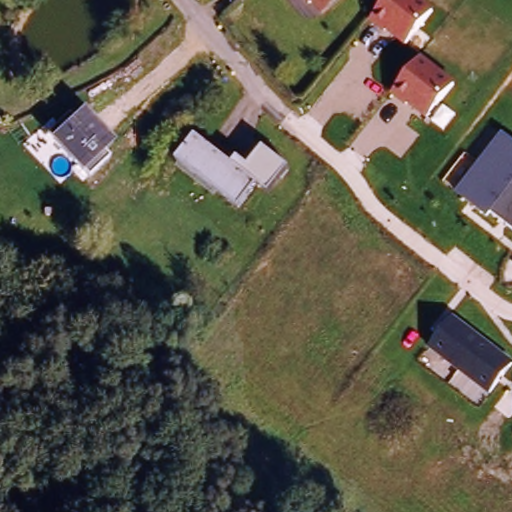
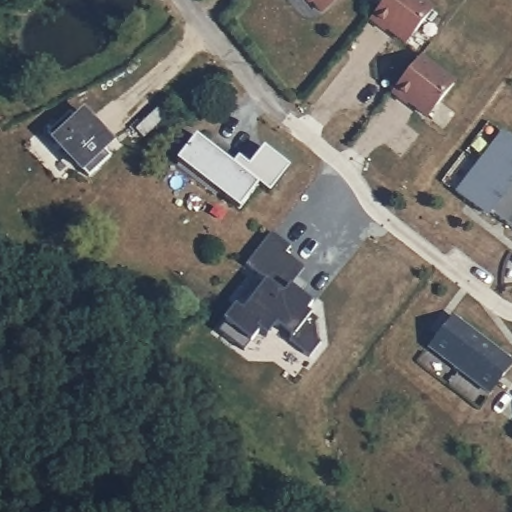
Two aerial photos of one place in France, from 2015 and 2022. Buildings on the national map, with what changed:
unchanged [(319,8),(312,0),(330,0),(319,8)]
unchanged [(434,8),(409,42),(374,17),(387,0),(424,0),(434,8)]
unchanged [(456,82),(429,118),(396,93),(423,55),(456,82)]
unchanged [(117,142),(83,174),(51,140),(85,108),(117,142)]
unchanged [(512,228),(494,214),(489,219),(455,193),(504,130),(512,137),(512,228)]
unchanged [(293,168),(271,196),(259,187),(241,211),(178,162),(198,137),(234,166),(241,158),(251,166),(265,147),(293,168)]
new [(291,246),(286,253),(304,268),(291,285),(313,302),(307,311),(311,314),(315,318),(316,341),(319,345),(310,357),(289,342),(292,338),(276,325),(266,337),(259,331),(249,342),(244,351),(219,332),(226,323),(223,320),(235,305),(241,311),(266,279),(246,264),(271,231),(291,246)]
unchanged [(430,350),(455,316),(512,360),(512,367),(492,395),(430,350)]

